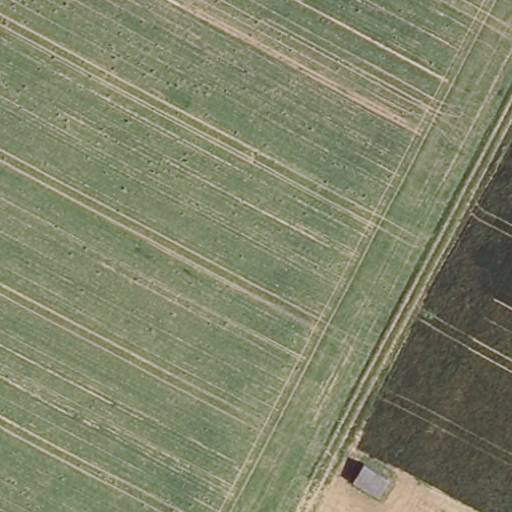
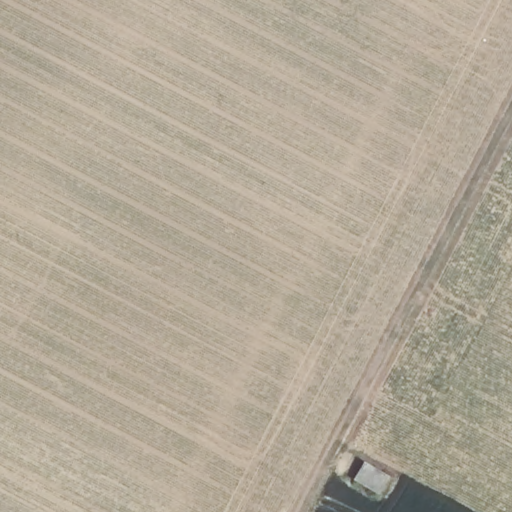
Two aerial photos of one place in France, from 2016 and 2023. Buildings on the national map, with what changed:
unchanged [(391,472),(380,492),(351,481),(364,457),(391,472)]

